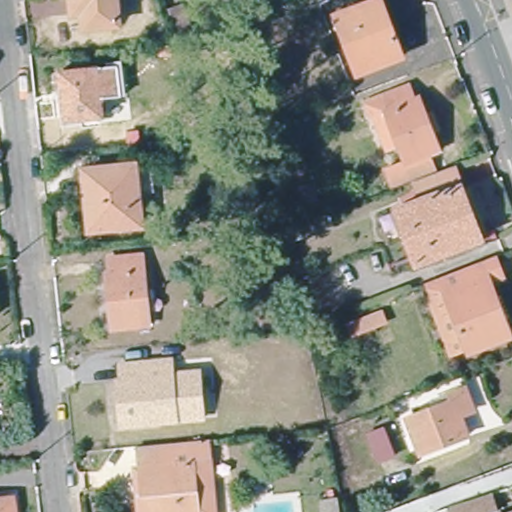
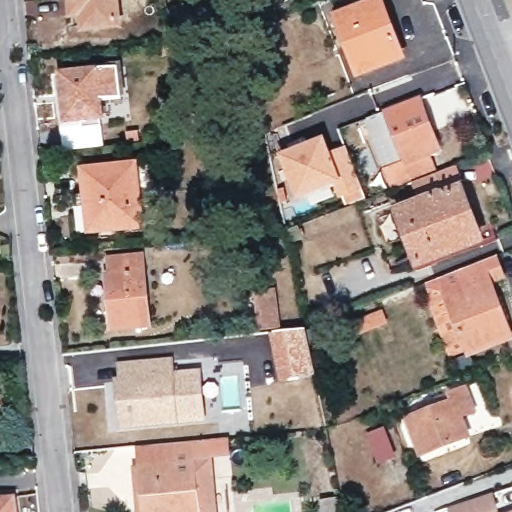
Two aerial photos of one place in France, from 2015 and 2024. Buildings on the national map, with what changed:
unchanged [(80,33),(79,20),(71,20),(69,0),(114,0),(117,28),(80,33)]
unchanged [(183,5),(194,34),(177,43),(166,13),(183,5)]
unchanged [(404,55),(360,71),(342,22),(384,5),(404,55)]
unchanged [(108,119),(64,124),(59,73),(101,69),(108,119)]
unchanged [(384,170),(404,165),(398,146),(384,151),(374,118),(372,119),(367,103),(413,88),(416,99),(422,96),(441,152),(422,158),(428,175),(391,190),(384,170)]
new [(332,151),(344,146),(360,188),(339,197),(334,186),(297,200),(282,153),(325,135),(332,151)]
unchanged [(159,190),(140,192),(144,225),(105,228),(106,236),(84,238),(81,191),(88,190),(88,168),(156,161),(159,190)]
unchanged [(258,201),(239,203),(237,173),(255,172),(258,201)]
unchanged [(480,243),(417,266),(409,243),(419,239),(415,223),(430,216),(421,188),(456,176),(480,243)]
unchanged [(149,325),(107,329),(101,274),(108,272),(107,257),(142,254),(149,325)]
unchanged [(508,259),(512,273),(512,278),(499,282),(512,316),(512,338),(478,352),(451,281),(508,259)]
unchanged [(478,352),(464,358),(436,287),(451,281),(478,352)]
unchanged [(276,326),(253,328),(252,302),(273,300),(276,326)]
unchanged [(388,324),(356,337),(351,326),(383,313),(388,324)]
new [(307,328),(317,374),(279,382),(270,334),(307,328)]
unchanged [(173,366),(174,380),(202,378),(204,424),(131,430),(129,393),(129,384),(133,384),(132,368),(173,366)]
unchanged [(476,413),(463,419),(468,440),(422,458),(409,423),(431,415),(426,402),(451,391),(453,395),(469,390),(476,413)]
unchanged [(397,452),(381,461),(367,432),(384,423),(397,452)]
unchanged [(210,443),(215,510),(199,512),(145,512),(140,452),(210,443)]
unchanged [(431,488),(437,506),(437,508),(428,511),(425,512),(422,512),(416,493),(431,488)]
unchanged [(449,505),(493,489),(499,510),(492,512),(452,512),(449,505)]
unchanged [(344,512),(325,512),(324,506),(342,493),(344,512)]
unchanged [(20,512),(0,512),(0,500),(19,498),(20,512)]

